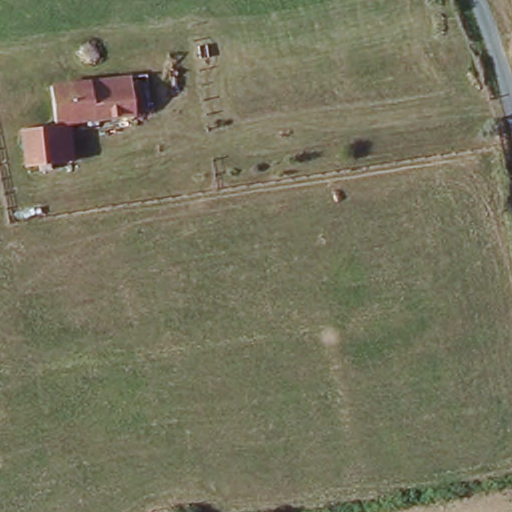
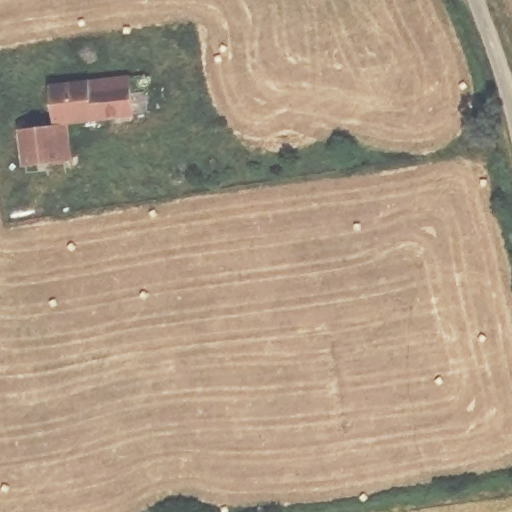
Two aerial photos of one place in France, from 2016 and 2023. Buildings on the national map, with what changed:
unchanged [(20,129),(55,125),(50,86),(130,76),(136,115),(70,125),(75,160),(24,167),(20,129)]

